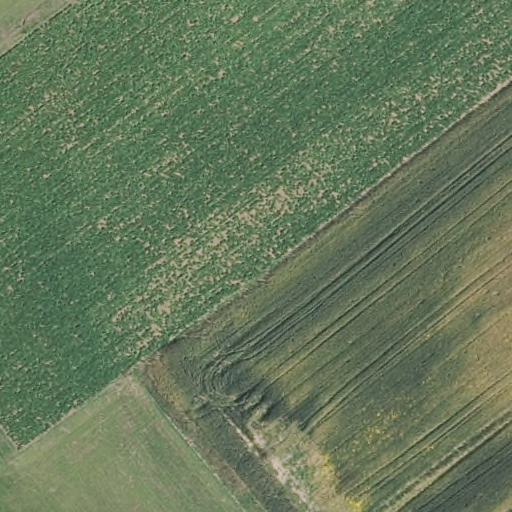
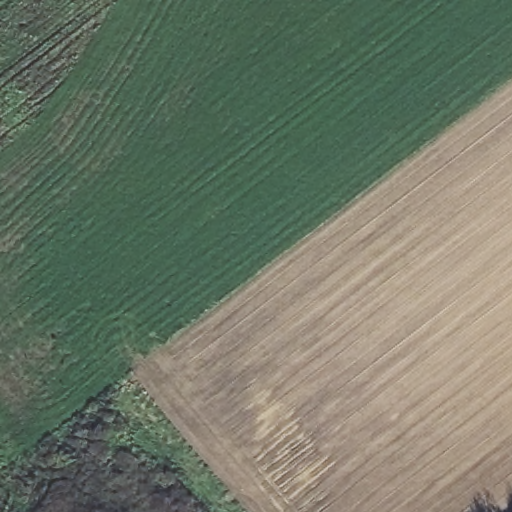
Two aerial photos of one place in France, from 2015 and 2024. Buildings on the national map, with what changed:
[]

